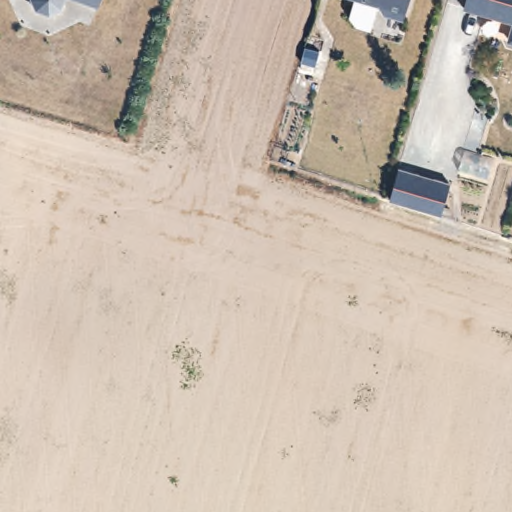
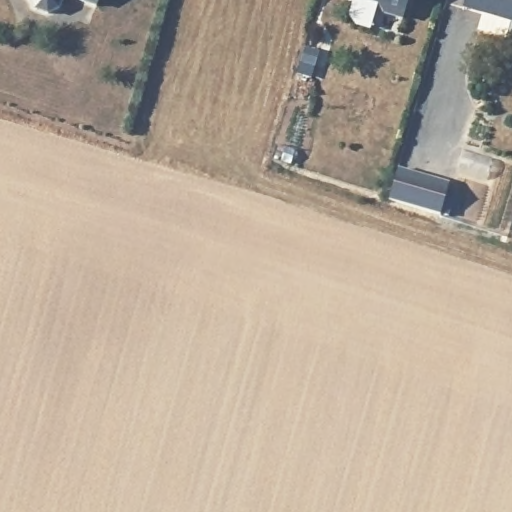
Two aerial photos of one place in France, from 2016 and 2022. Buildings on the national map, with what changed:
unchanged [(60,10),(50,15),(36,11),(31,0),(63,0),(60,10)]
unchanged [(98,6),(80,0),(99,0),(98,6)]
unchanged [(405,17),(383,11),(384,7),(357,0),(410,0),(405,17)]
unchanged [(465,10),(467,0),(512,0),(512,24),(465,10)]
unchanged [(512,43),(509,39),(512,29),(512,43)]
unchanged [(401,169),(451,186),(442,217),(392,200),(401,169)]

